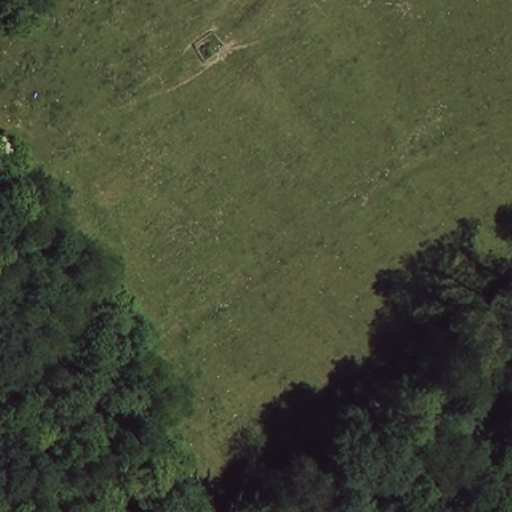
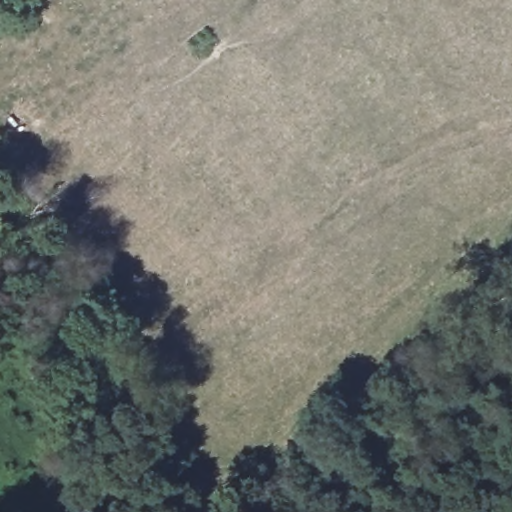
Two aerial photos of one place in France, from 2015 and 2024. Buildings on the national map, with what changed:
[]

